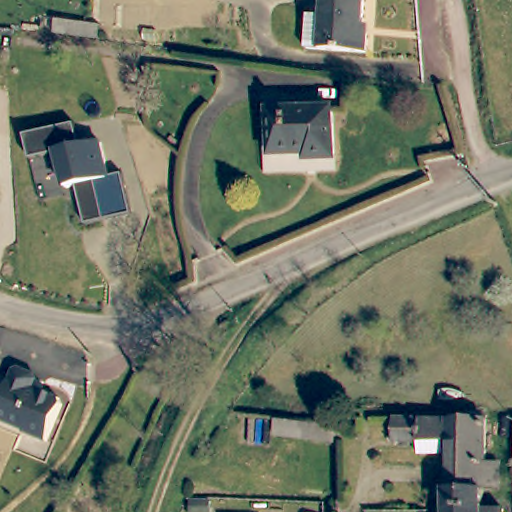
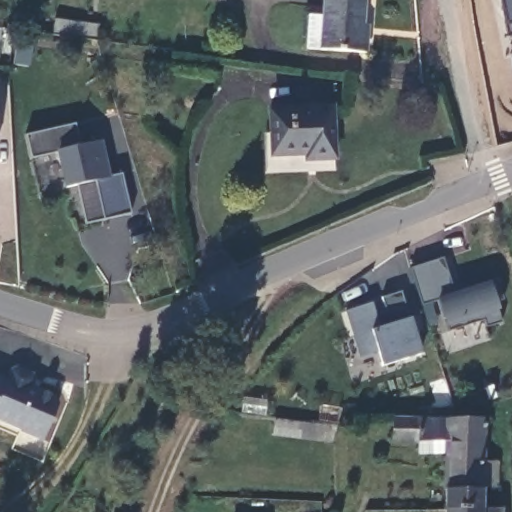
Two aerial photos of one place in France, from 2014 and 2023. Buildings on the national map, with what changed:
unchanged [(359,30),(365,31),(363,51),(319,48),(322,14),(323,0),(360,0),(359,30)]
unchanged [(67,16),(104,21),(102,37),(65,33),(67,16)]
unchanged [(273,153),(273,130),(272,108),(335,105),(337,157),(314,158),(313,151),(273,153)]
unchanged [(75,123),(80,144),(101,139),(109,176),(122,173),(131,213),(86,223),(77,185),(63,188),(54,152),(31,157),(25,134),(75,123)]
new [(443,257),(455,291),(488,281),(490,283),(498,280),(503,299),(496,302),(498,308),(502,321),(487,326),(485,319),(449,330),(450,324),(444,326),(437,299),(422,304),(411,268),(443,257)]
new [(372,302),(375,314),(387,311),(382,298),(401,292),(411,318),(422,353),(381,365),(376,352),(360,356),(345,311),(372,302)]
unchanged [(19,357),(24,355),(40,360),(42,365),(40,373),(65,382),(68,388),(56,425),(32,417),(32,416),(0,406),(0,364),(15,369),(19,357)]
unchanged [(446,475),(447,451),(417,451),(417,438),(392,438),(392,417),(488,418),(485,463),(484,475),(446,475)]
unchanged [(482,505),(445,507),(445,475),(446,475),(484,475),(485,463),(498,464),(498,474),(497,487),(484,487),(484,488),(482,488),(482,505)]
unchanged [(482,505),(482,507),(482,512),(445,512),(445,507),(482,505)]

